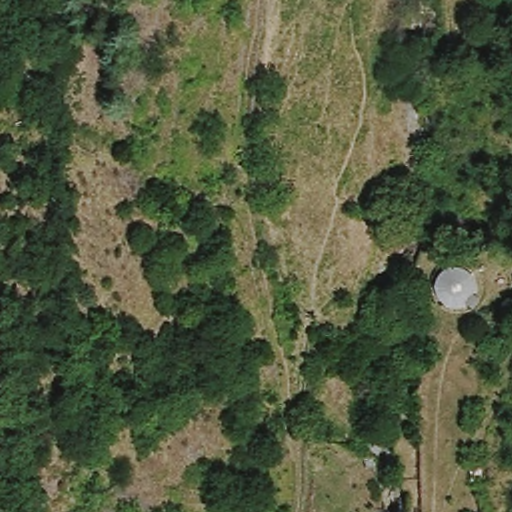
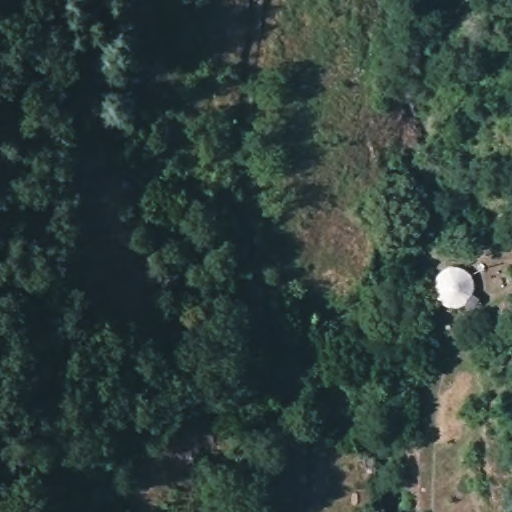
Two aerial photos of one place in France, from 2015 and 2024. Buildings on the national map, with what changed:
unchanged [(453,310),(442,307),(437,300),(433,290),(434,280),(442,272),(451,268),(462,270),(473,276),(478,283),(478,295),(469,293),(463,300),(467,308),(453,310)]
unchanged [(500,303),(512,302),(512,322),(503,323),(500,303)]

